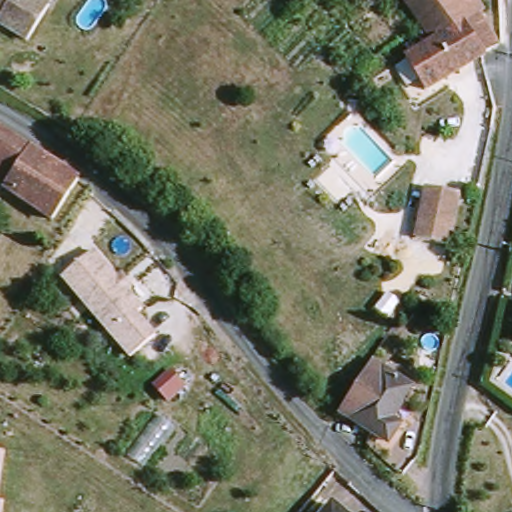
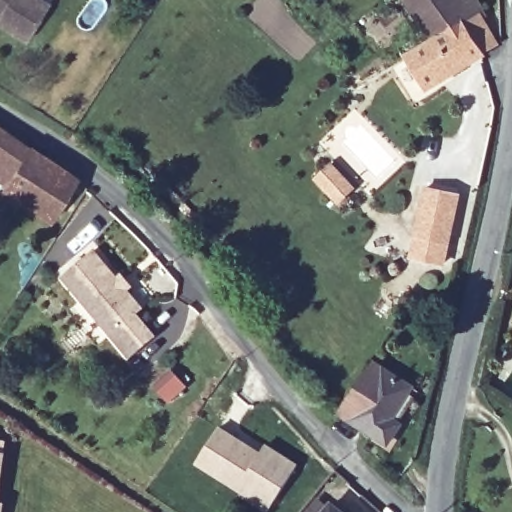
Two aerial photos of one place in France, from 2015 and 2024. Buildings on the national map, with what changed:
unchanged [(57,5),(34,42),(2,24),(0,23),(0,0),(49,0),(57,5)]
unchanged [(483,16),(502,46),(457,73),(427,91),(406,62),(435,41),(408,0),(480,0),(489,13),(483,16)]
unchanged [(9,191),(13,184),(0,175),(0,125),(82,179),(56,221),(9,191)]
new [(341,202),(336,196),(319,178),(333,164),(350,182),(355,188),(341,202)]
unchanged [(461,194),(451,246),(420,239),(430,188),(461,194)]
unchanged [(142,319),(161,341),(136,362),(68,282),(99,256),(122,284),(127,280),(136,291),(132,295),(148,314),(142,319)]
unchanged [(388,371),(418,390),(400,419),(409,424),(396,446),(356,421),(346,415),(348,408),(350,405),(371,373),(376,364),(388,371)]
unchanged [(170,402),(161,392),(178,377),(185,370),(194,380),(197,383),(173,405),(170,402)]
new [(242,490),(197,462),(220,426),(261,452),(267,444),(273,448),(298,464),(276,499),(270,508),(242,490)]
unchanged [(0,474),(0,453),(3,453),(0,474)]
unchanged [(1,512),(0,512),(0,503),(2,503),(1,512)]
unchanged [(348,512),(335,512),(340,505),(348,512)]

